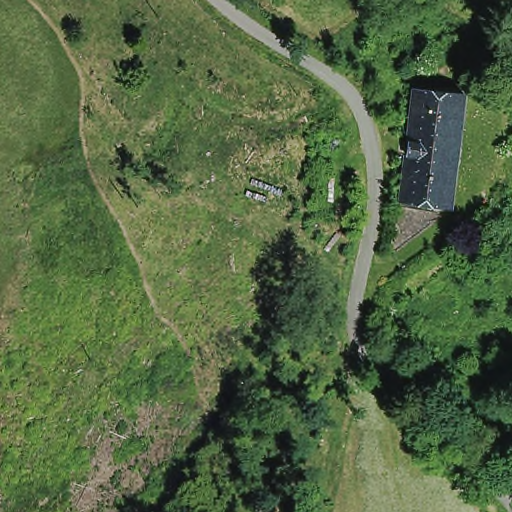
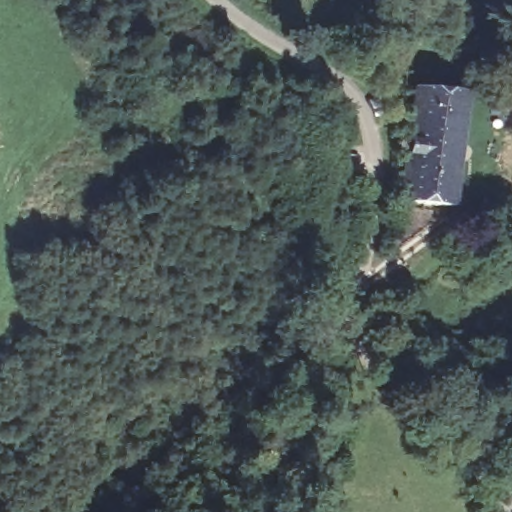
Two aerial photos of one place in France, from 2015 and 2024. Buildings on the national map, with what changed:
unchanged [(488,91),(464,88),(465,72),(490,75),(488,91)]
unchanged [(451,209),(398,203),(412,93),(465,100),(451,209)]

